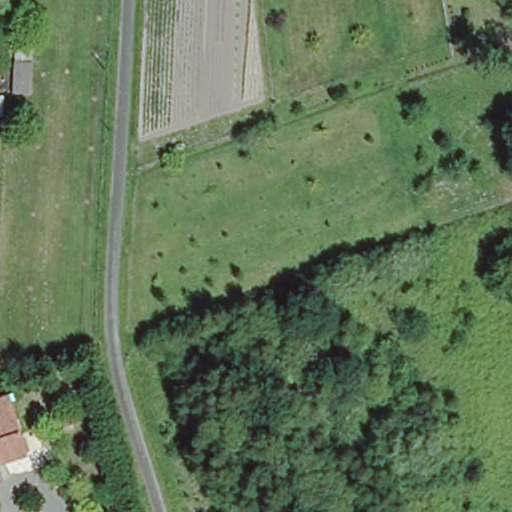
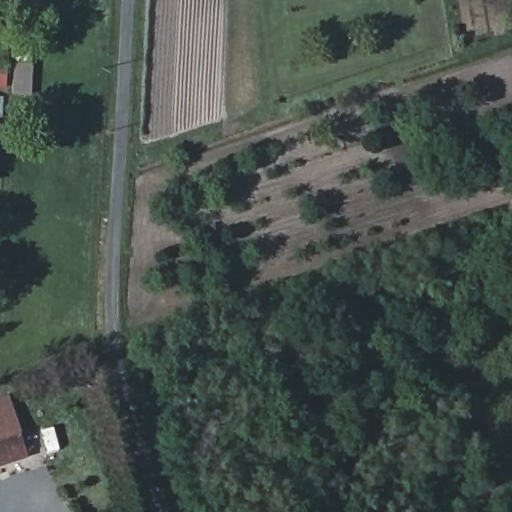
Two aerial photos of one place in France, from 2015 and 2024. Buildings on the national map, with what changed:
unchanged [(0,456),(0,397),(7,395),(21,434),(26,449),(0,456)]

